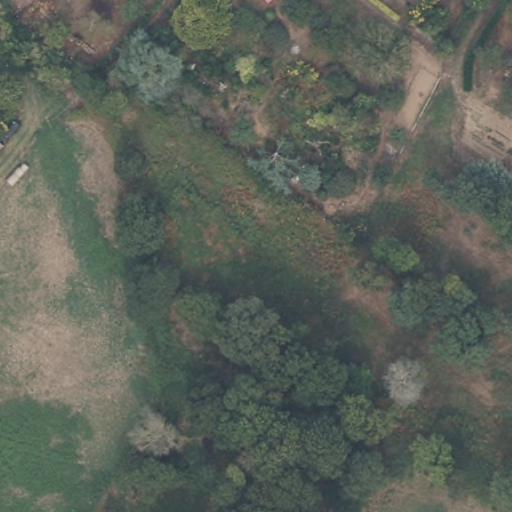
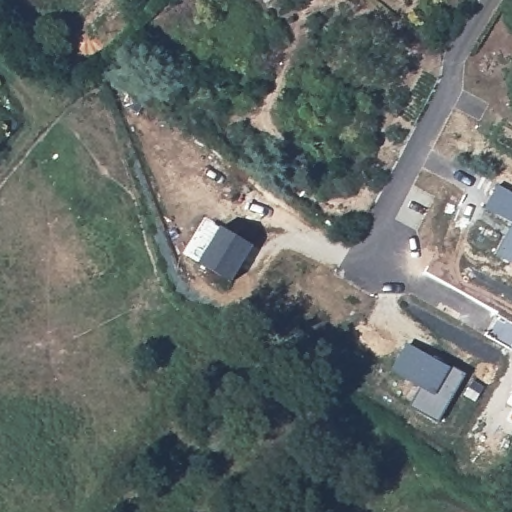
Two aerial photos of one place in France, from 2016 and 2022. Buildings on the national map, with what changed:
new [(499,185),(512,192),(512,222),(486,209),(499,185)]
new [(255,245),(233,282),(201,263),(223,227),(255,245)]
new [(512,227),(512,262),(498,255),(512,227)]
new [(439,423),(410,406),(421,386),(392,370),(409,341),(466,374),(439,423)]

